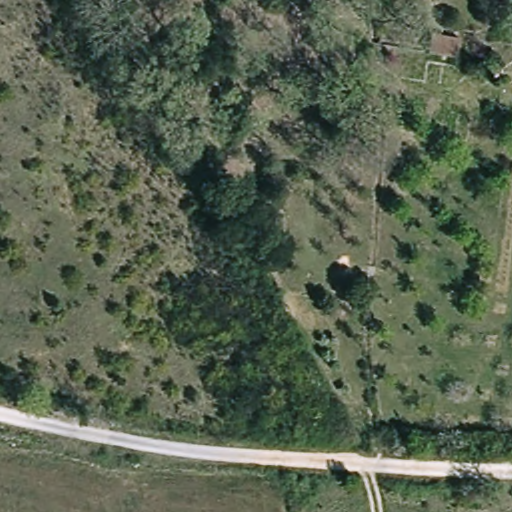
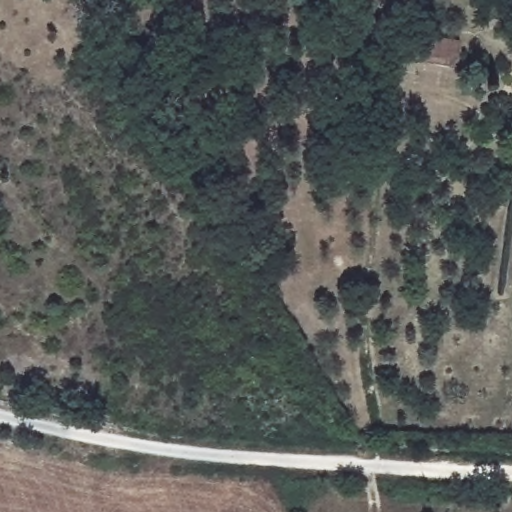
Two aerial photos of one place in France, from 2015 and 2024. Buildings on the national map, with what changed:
unchanged [(453,58),(427,54),(430,36),(457,40),(453,58)]

